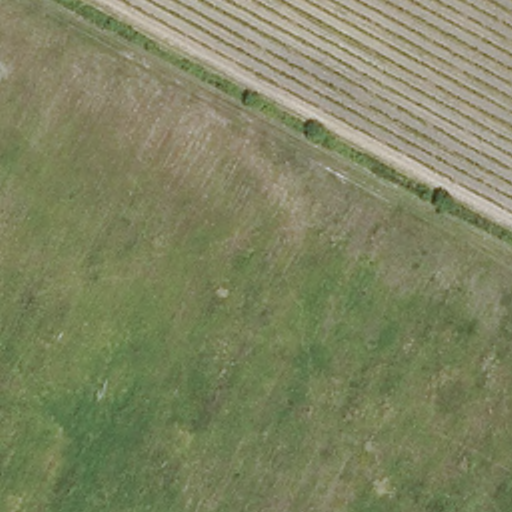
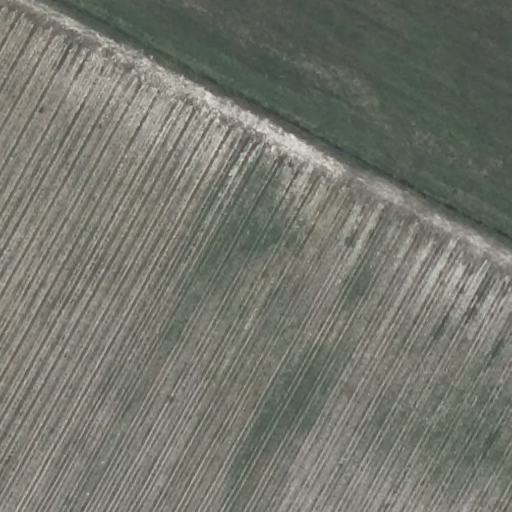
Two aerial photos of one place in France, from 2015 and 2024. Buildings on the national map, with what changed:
[]

